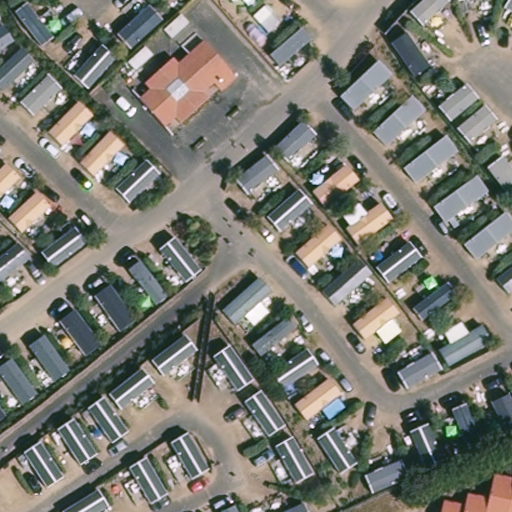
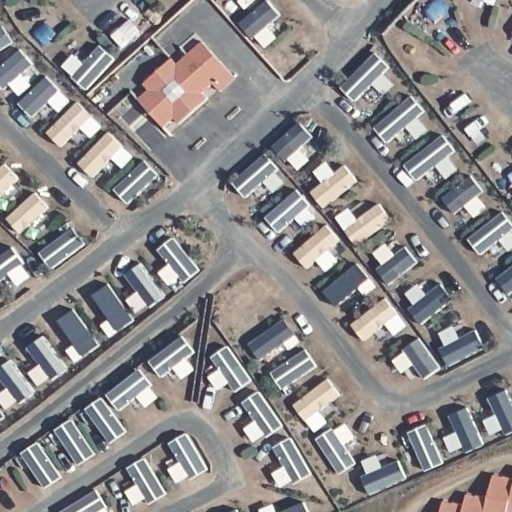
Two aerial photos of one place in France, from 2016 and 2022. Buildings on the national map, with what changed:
unchanged [(233,80),(219,93),(212,86),(200,96),(206,103),(180,127),(173,121),(164,129),(136,100),(146,91),(141,85),(167,60),(174,66),(200,44),(233,80)]
unchanged [(445,502),(465,507),(467,495),(488,500),(495,476),(512,480),(512,512),(442,512),(445,502)]

